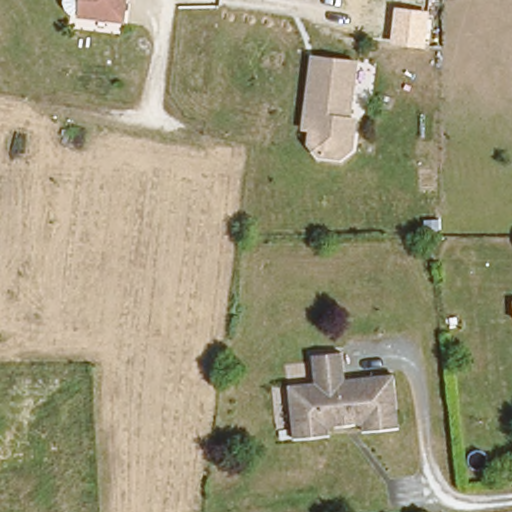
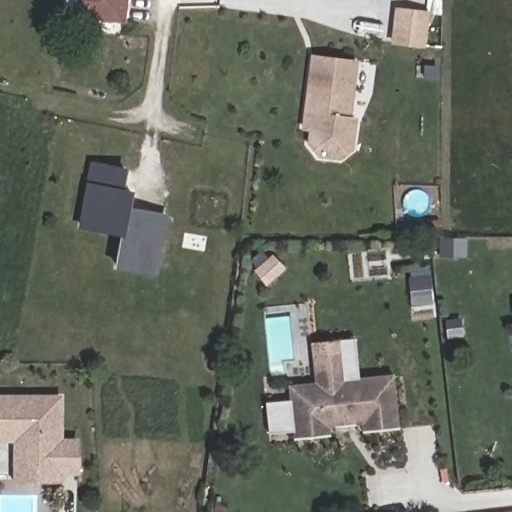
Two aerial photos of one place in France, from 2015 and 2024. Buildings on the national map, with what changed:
unchanged [(64,7),(62,0),(121,0),(119,17),(78,13),(78,12),(69,11),(64,7)]
new [(424,48),(389,43),(393,7),(428,11),(424,48)]
unchanged [(343,121),(349,122),(346,146),(346,151),(334,160),(312,157),(304,145),(303,145),(307,117),(299,116),(308,58),(352,64),(343,121)]
new [(78,229),(89,162),(127,169),(123,190),(134,192),(130,208),(168,214),(156,276),(114,269),(120,236),(78,229)]
new [(272,254),(286,270),(266,287),(253,271),(272,254)]
unchanged [(338,346),(341,373),(389,368),(395,422),(358,426),(357,419),(325,422),(325,429),(289,433),(284,379),(310,376),(308,349),(338,346)]
new [(61,438),(79,438),(80,475),(61,475),(62,483),(13,483),(14,442),(0,442),(0,394),(61,394),(61,438)]

